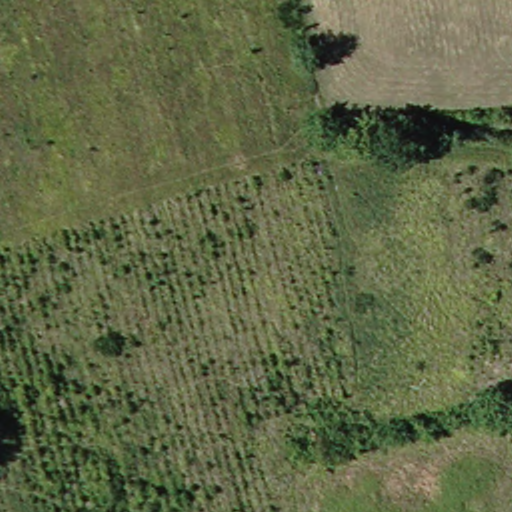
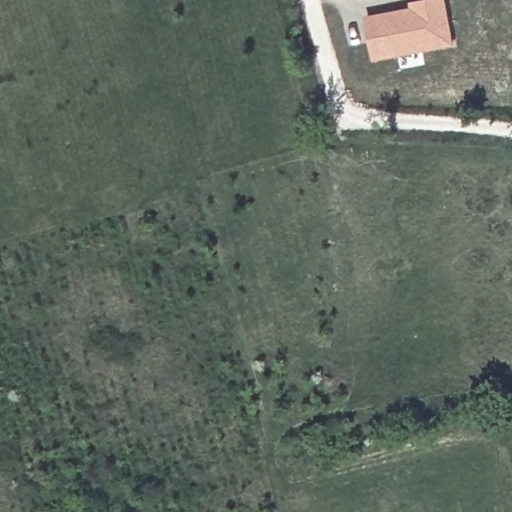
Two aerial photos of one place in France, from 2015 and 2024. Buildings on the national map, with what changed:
new [(374,61),(365,17),(411,7),(411,2),(419,0),(448,0),(456,44),(374,61)]

